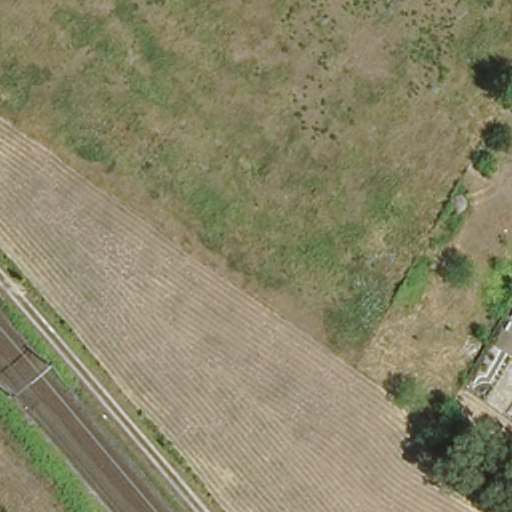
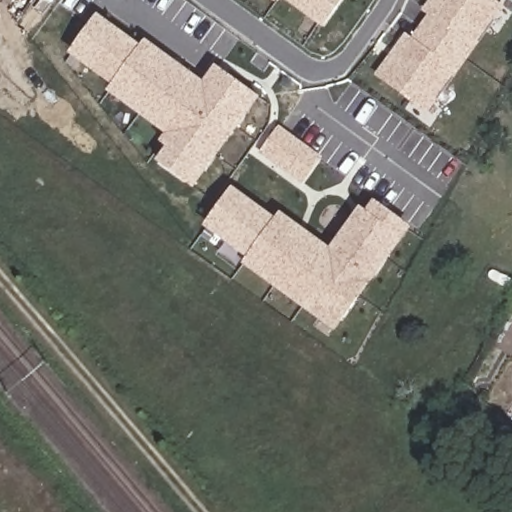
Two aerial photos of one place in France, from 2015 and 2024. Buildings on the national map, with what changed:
new [(323,24),(289,0),(340,0),(323,24)]
new [(428,111),(377,74),(405,36),(410,39),(430,12),(423,9),(430,0),(492,0),(503,8),(428,111)]
new [(170,148),(162,143),(170,133),(110,89),(114,82),(72,52),(97,18),(139,48),(144,42),(204,86),(217,66),(258,96),(191,187),(160,163),(170,148)]
new [(277,130),(320,160),(303,184),(261,153),(277,130)]
new [(233,190),(275,221),(278,214),(330,252),(362,209),(368,213),(375,204),(407,228),(334,326),(245,261),(250,254),(208,225),(233,190)]

